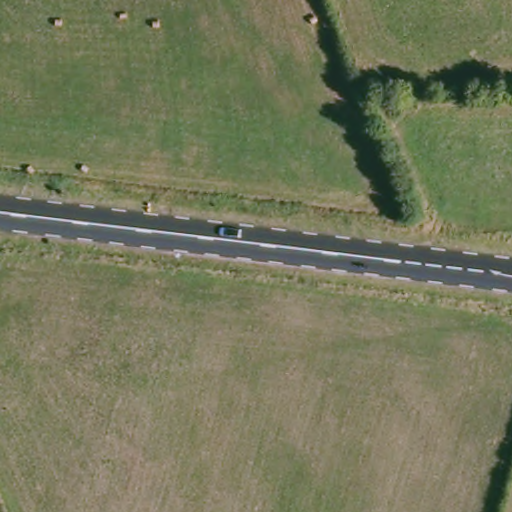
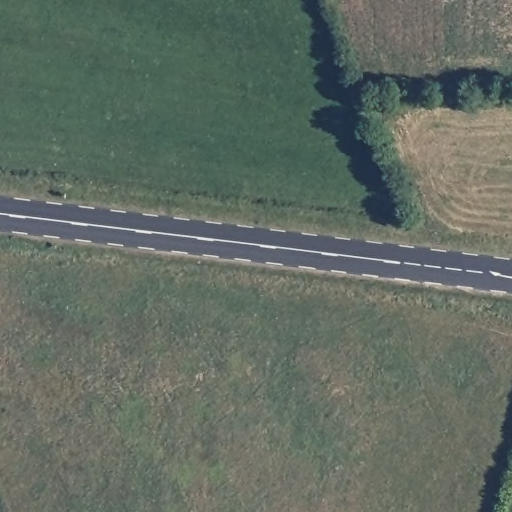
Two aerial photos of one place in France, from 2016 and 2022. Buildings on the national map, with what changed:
[]

